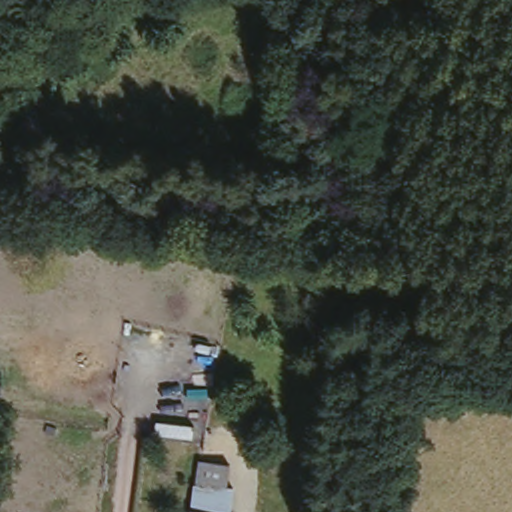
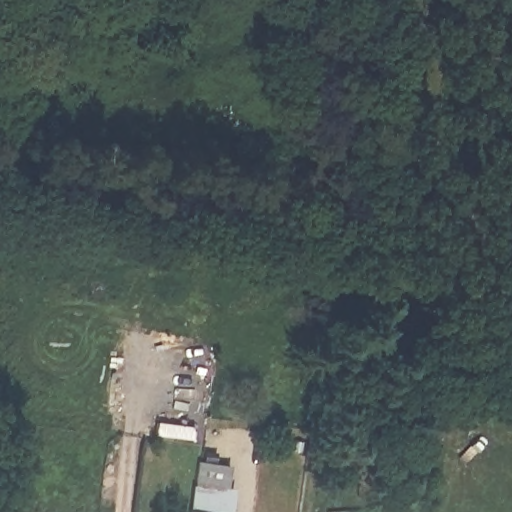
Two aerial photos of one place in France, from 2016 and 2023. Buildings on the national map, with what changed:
unchanged [(277,430),(276,436),(264,434),(264,423),(277,426),(277,430)]
unchanged [(228,464),(225,488),(230,490),(228,512),(190,512),(195,460),(228,464)]

